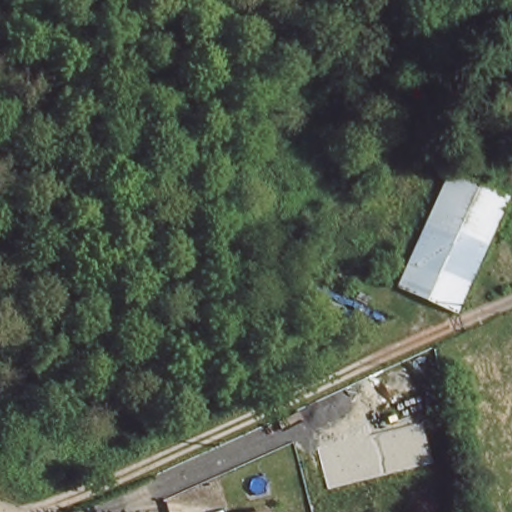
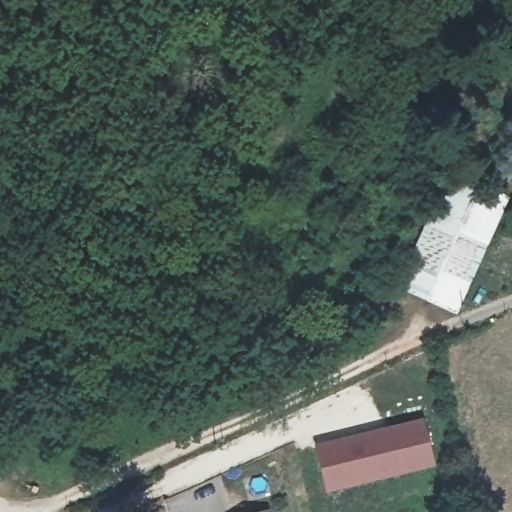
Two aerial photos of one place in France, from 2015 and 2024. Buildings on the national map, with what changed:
unchanged [(408,293),(445,170),(506,191),(469,312),(408,293)]
new [(420,413),(430,457),(323,484),(315,441),(420,413)]
unchanged [(267,512),(270,511),(270,512),(267,512)]

